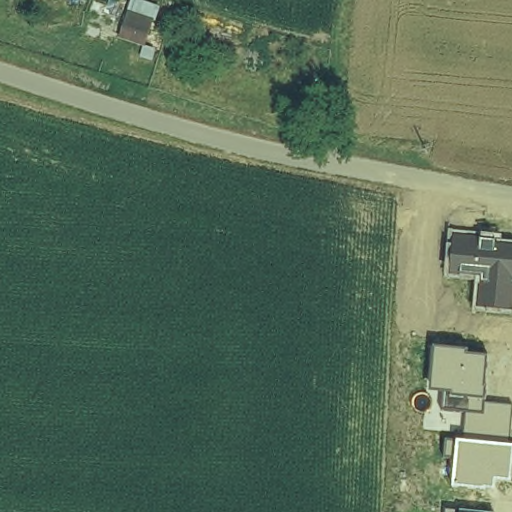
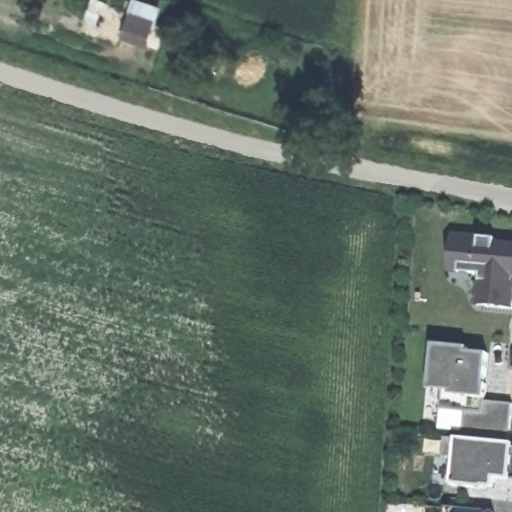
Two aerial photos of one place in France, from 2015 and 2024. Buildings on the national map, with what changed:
unchanged [(124,42),(134,0),(136,0),(164,7),(160,24),(157,24),(155,24),(151,48),(124,42)]
unchanged [(454,236),(496,240),(496,245),(512,247),(512,309),(479,306),(481,275),(451,272),(454,236)]
unchanged [(436,345),(468,348),(469,353),(489,355),(486,402),(512,405),(512,416),(510,445),(463,441),(466,413),(441,410),(443,390),(432,389),(436,345)]
unchanged [(446,440),(463,441),(510,445),(512,445),(512,481),(496,480),(495,482),(486,482),(485,489),(454,486),(456,459),(445,457),(446,440)]
unchanged [(482,512),(445,512),(445,509),(482,512)]

